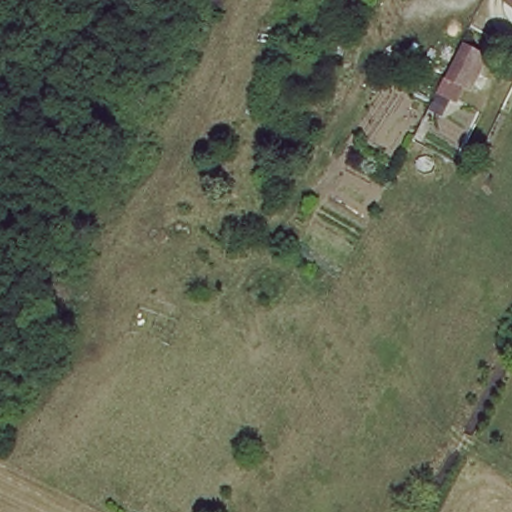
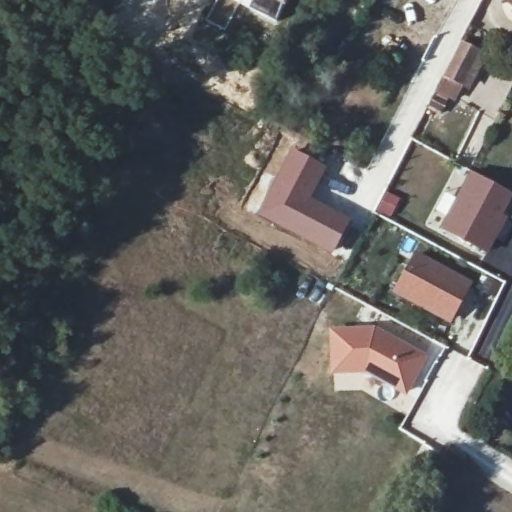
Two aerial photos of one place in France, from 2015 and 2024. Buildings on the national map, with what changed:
new [(284,7),(270,0),(287,0),(284,7)]
new [(502,0),(512,0),(512,10),(500,2),(502,0)]
demolished [(511,0),(512,0),(512,18),(503,14),(511,0)]
unchanged [(490,57),(471,95),(463,88),(454,106),(442,99),(437,111),(426,109),(459,38),(490,57)]
new [(290,147),(326,167),(311,197),(350,218),(331,254),(254,213),(290,147)]
new [(512,194),(500,216),(506,219),(486,255),(439,230),(468,171),(512,194)]
new [(415,252),(470,282),(451,319),(396,291),(415,252)]
new [(373,327),(426,358),(405,398),(363,375),(327,376),(327,329),(373,327)]

